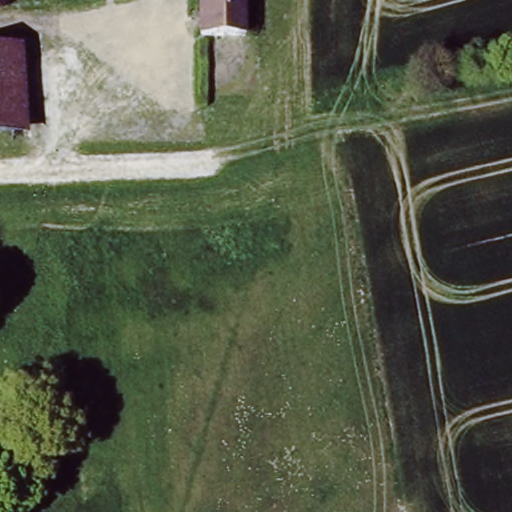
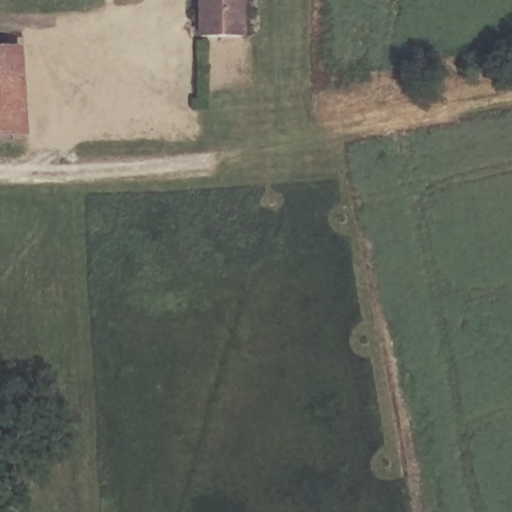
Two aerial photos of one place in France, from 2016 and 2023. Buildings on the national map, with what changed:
unchanged [(205,31),(206,0),(245,0),(244,33),(205,31)]
unchanged [(23,135),(0,135),(0,47),(22,47),(23,135)]

